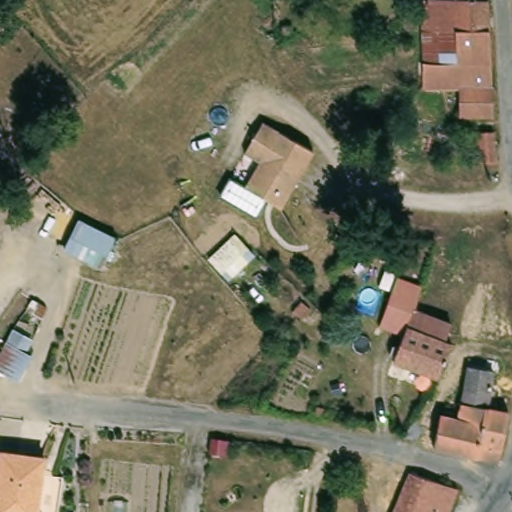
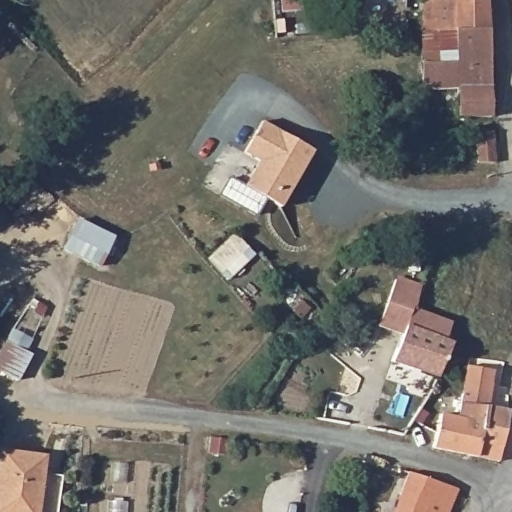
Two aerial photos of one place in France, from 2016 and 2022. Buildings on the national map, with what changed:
unchanged [(419,26),(419,21),(421,0),(484,0),(485,24),(452,26),(419,26)]
unchanged [(456,111),(455,84),(420,83),(420,56),(450,57),(451,44),(452,26),(485,24),(489,70),(491,113),(456,111)]
unchanged [(257,163),(243,154),(262,124),(312,152),(280,209),(243,188),(257,163)]
unchanged [(493,171),(481,168),(480,156),(475,156),(473,128),(492,127),(494,156),(496,157),(495,172),(493,171)]
unchanged [(76,220),(123,243),(105,278),(60,256),(76,220)]
unchanged [(390,366),(400,338),(376,330),(382,314),(392,284),(417,292),(410,313),(447,327),(441,345),(448,348),(436,380),(390,366)]
unchanged [(294,286),(305,297),(287,314),(276,303),(294,286)]
unchanged [(23,313),(49,329),(17,391),(0,379),(0,360),(23,313)]
unchanged [(498,446),(496,460),(431,446),(437,414),(454,417),(457,402),(465,359),(492,362),(490,375),(511,379),(506,410),(512,412),(512,426),(509,447),(498,446)]
unchanged [(319,406),(326,408),(325,413),(318,413),(319,406)]
unchanged [(40,456),(45,457),(38,512),(0,512),(0,451),(40,456)]
unchanged [(454,488),(446,512),(393,512),(408,471),(454,488)]

